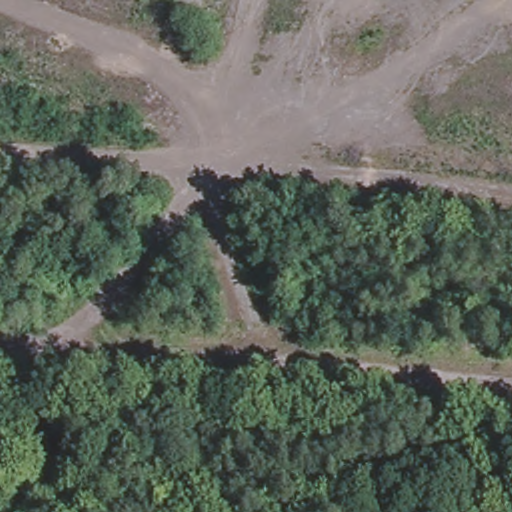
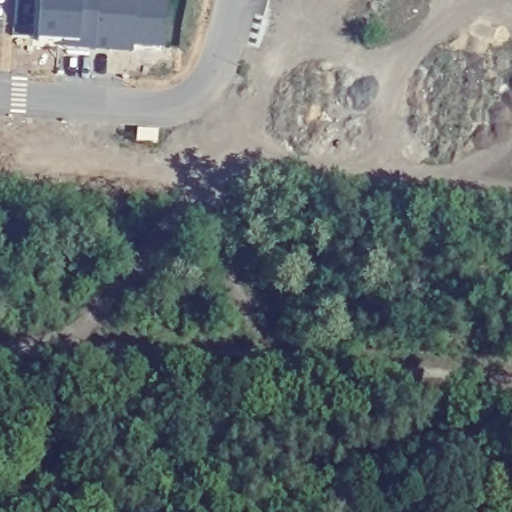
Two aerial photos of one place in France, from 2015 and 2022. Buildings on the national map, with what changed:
new [(82,44),(42,41),(45,0),(103,0),(99,50),(82,49),(82,44)]
new [(137,52),(116,51),(99,50),(102,0),(126,0),(172,3),(169,50),(117,46),(138,48),(137,52)]
new [(71,43),(82,44),(82,49),(70,48),(71,43)]
new [(142,129),(162,130),(162,143),(140,141),(142,129)]

